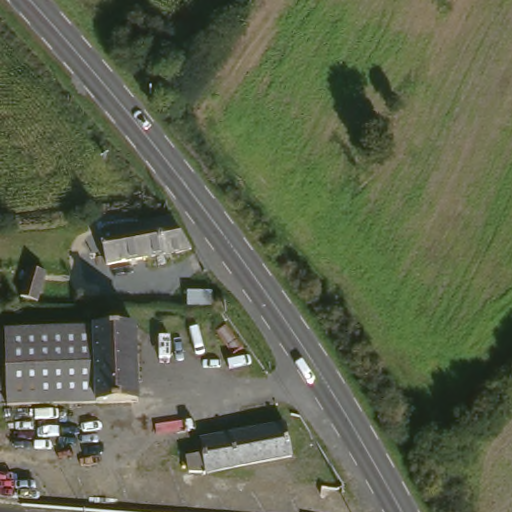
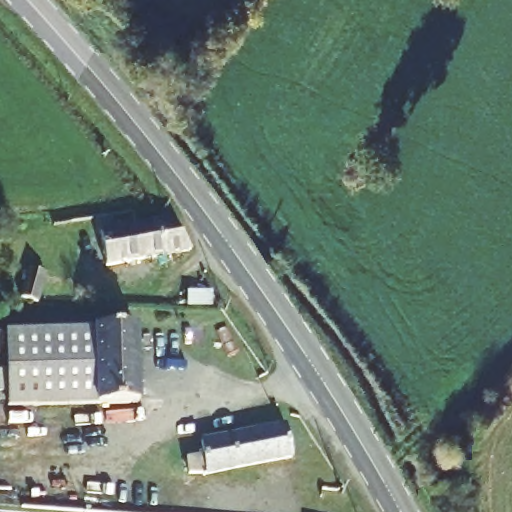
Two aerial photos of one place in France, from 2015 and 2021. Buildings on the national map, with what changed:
unchanged [(166,261),(148,264),(140,230),(159,227),(171,224),(192,255),(166,261)]
unchanged [(107,272),(100,237),(140,230),(148,264),(107,272)]
unchanged [(21,299),(29,269),(46,274),(38,303),(21,299)]
unchanged [(213,306),(188,306),(188,292),(212,292),(213,306)]
unchanged [(103,405),(13,408),(12,401),(4,401),(4,394),(1,394),(1,373),(11,372),(10,333),(141,329),(144,404),(103,405)]
unchanged [(207,480),(189,479),(187,464),(204,461),(202,445),(285,431),(292,463),(207,480)]

